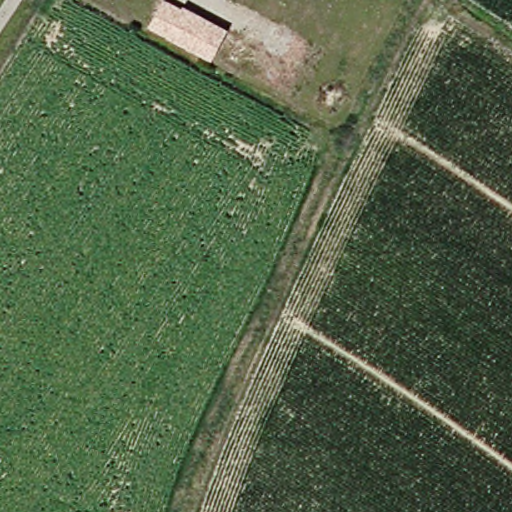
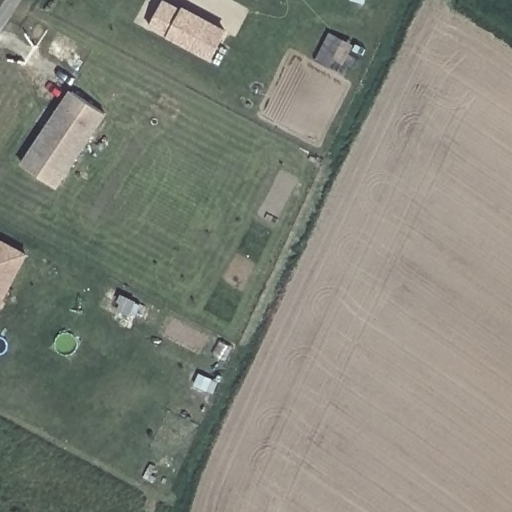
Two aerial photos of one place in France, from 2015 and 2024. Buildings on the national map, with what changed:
unchanged [(212,63),(149,28),(164,1),(183,9),(184,7),(228,30),(212,63)]
new [(70,94),(103,117),(54,188),(21,166),(70,94)]
new [(0,303),(0,241),(25,254),(0,303)]

